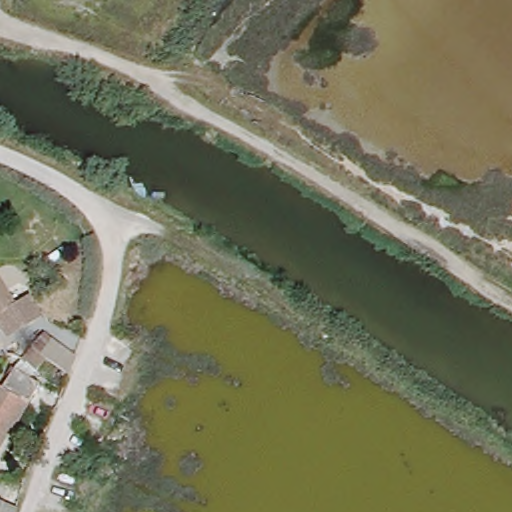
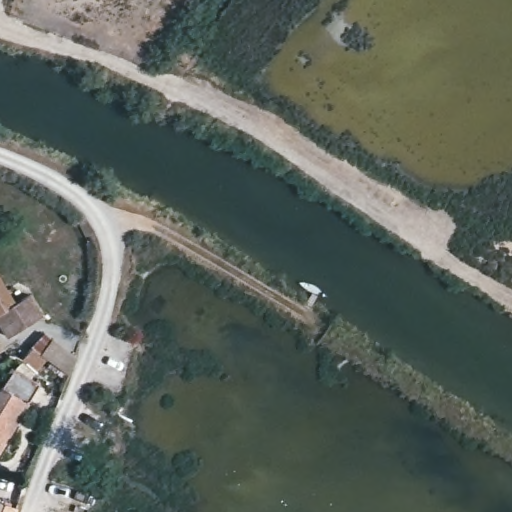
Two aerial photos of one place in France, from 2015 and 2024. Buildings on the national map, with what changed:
unchanged [(0,297),(0,286),(5,293),(0,297)]
unchanged [(5,306),(34,289),(45,308),(15,324),(5,306)]
unchanged [(69,341),(58,363),(30,349),(46,326),(69,341)]
unchanged [(0,346),(0,332),(6,342),(0,346)]
unchanged [(37,373),(0,429),(0,380),(14,358),(37,373)]
unchanged [(14,512),(0,512),(0,502),(16,508),(14,512)]

